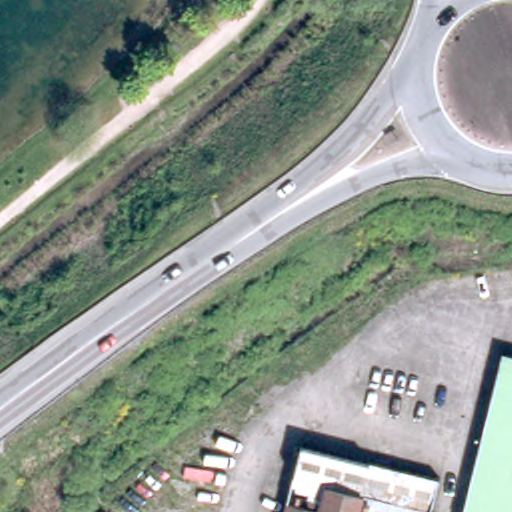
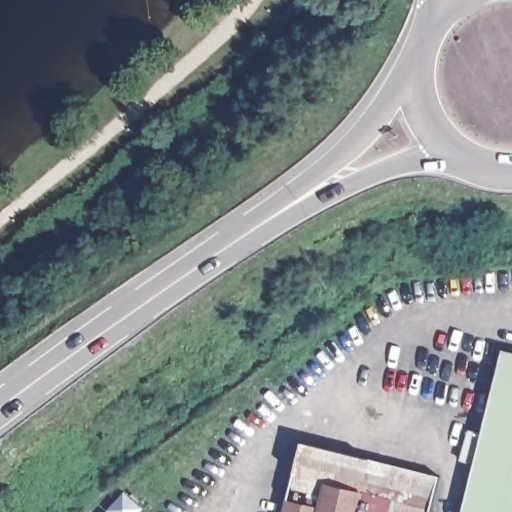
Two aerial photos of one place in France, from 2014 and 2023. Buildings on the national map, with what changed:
unchanged [(506,349),(509,340),(512,341),(512,512),(468,512),(506,349)]
unchanged [(297,446),(436,479),(427,512),(281,512),(297,446)]

